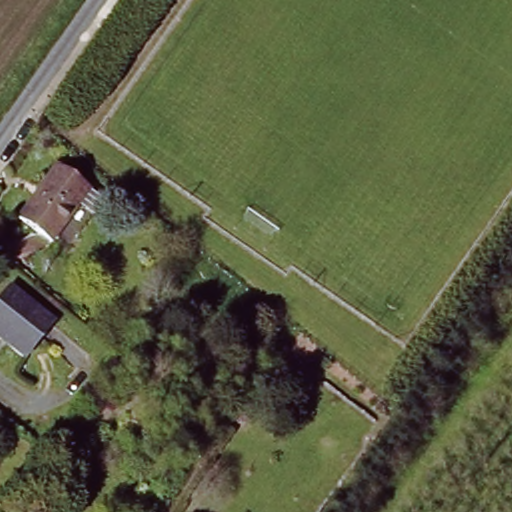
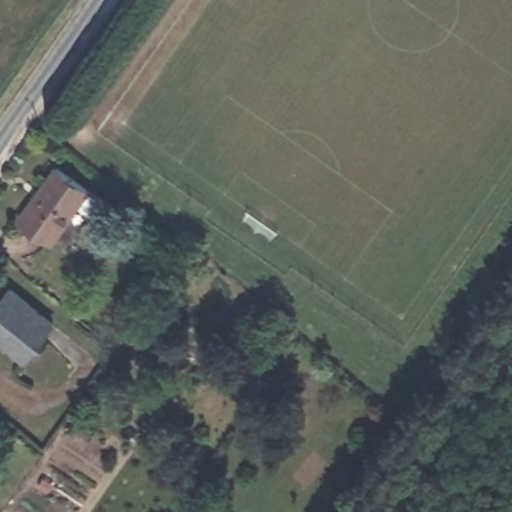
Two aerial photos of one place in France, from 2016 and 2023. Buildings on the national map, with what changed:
unchanged [(56,229),(25,207),(58,159),(89,180),(56,229)]
unchanged [(0,345),(0,302),(9,292),(52,330),(22,364),(0,345)]

